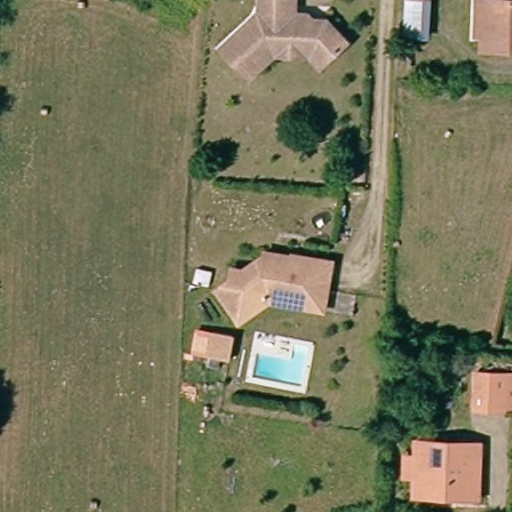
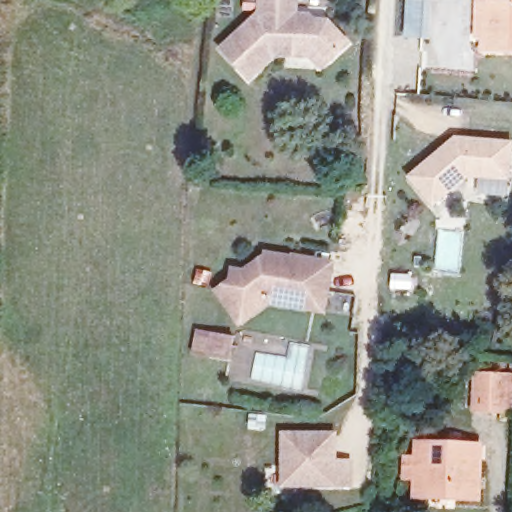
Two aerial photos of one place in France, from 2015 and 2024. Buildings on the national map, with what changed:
unchanged [(294,49),(284,49),(259,71),(233,42),(270,9),(272,9),(272,0),(300,0),(300,10),(314,11),(318,16),(332,17),(353,38),(335,55),(329,62),(318,50),(294,49)]
unchanged [(434,40),(408,40),(408,0),(434,0),(434,40)]
unchanged [(512,2),(512,52),(484,50),(486,0),(491,0),(512,2)]
new [(467,177),(433,208),(407,178),(454,138),(512,141),(512,149),(510,179),(467,177)]
unchanged [(305,277),(313,278),(309,299),(270,293),(242,314),(218,282),(233,272),(234,261),(245,262),(264,249),(274,251),(294,254),(295,246),(310,249),(305,277)]
unchanged [(334,253),(326,301),(309,299),(313,278),(305,277),(310,249),(334,253)]
unchanged [(228,372),(227,379),(207,376),(208,370),(211,351),(230,354),(228,372)]
unchanged [(482,375),(512,376),(512,409),(479,406),(482,375)]
new [(279,488),(280,432),(336,433),(335,461),(353,462),(352,488),(279,488)]
unchanged [(419,496),(420,441),(485,444),(482,499),(419,496)]

